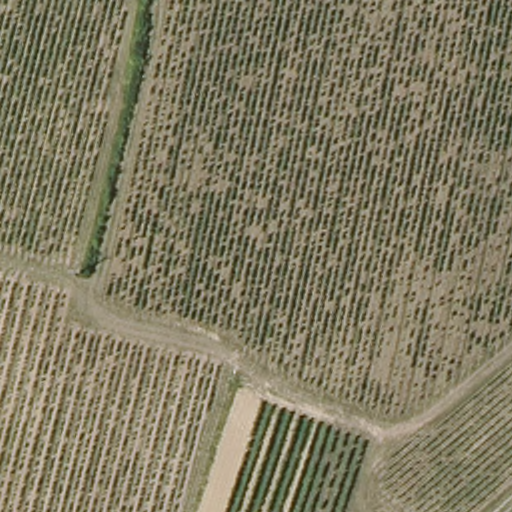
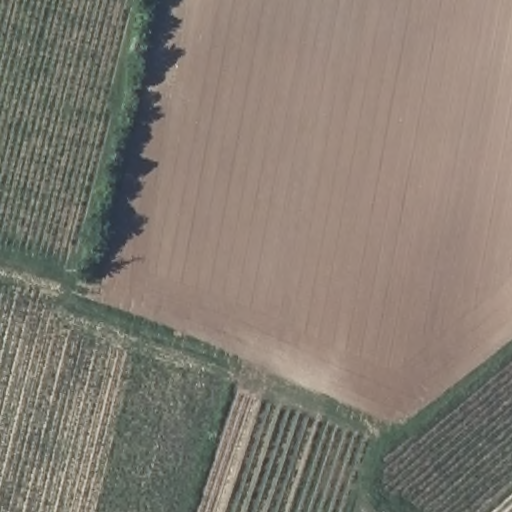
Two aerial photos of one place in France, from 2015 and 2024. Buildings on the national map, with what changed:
[]

